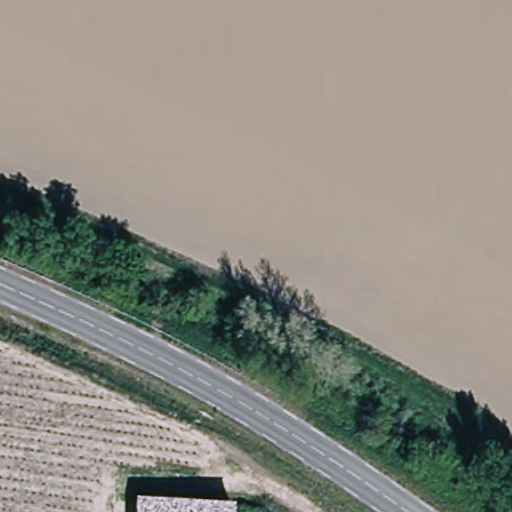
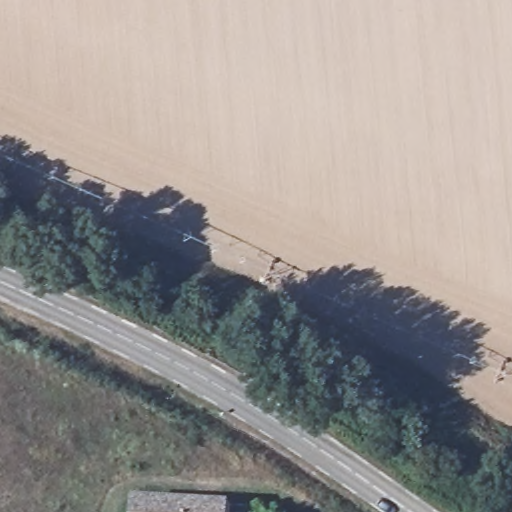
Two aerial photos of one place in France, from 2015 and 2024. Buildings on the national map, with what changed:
unchanged [(227,508),(227,512),(129,512),(129,502),(227,508)]

